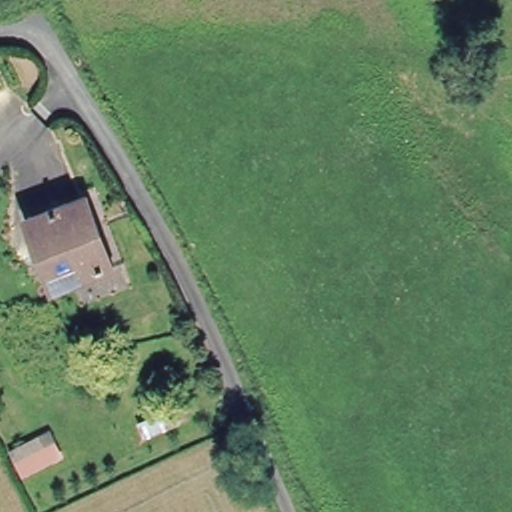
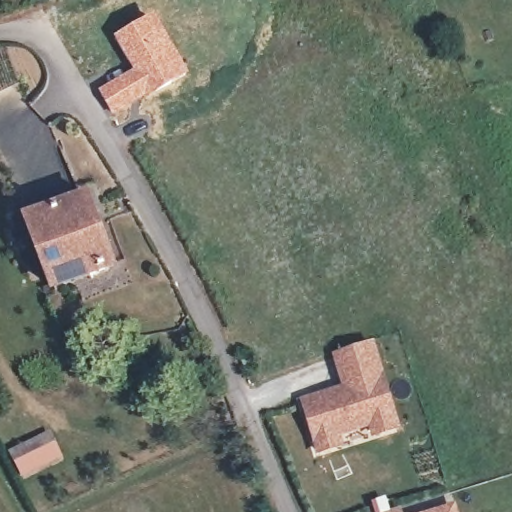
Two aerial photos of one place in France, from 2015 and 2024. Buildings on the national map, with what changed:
new [(132,71),(113,36),(155,15),(189,75),(113,116),(98,89),(132,71)]
unchanged [(25,226),(84,204),(104,261),(108,272),(84,283),(49,298),(46,293),(44,285),(25,226)]
new [(371,438),(368,427),(340,435),(343,446),(317,455),(299,398),(341,385),(332,355),(374,341),(400,429),(371,438)]
unchanged [(25,483),(9,452),(23,445),(39,437),(51,461),(25,483)]
new [(454,504),(457,512),(426,512),(454,504)]
new [(400,507),(402,512),(384,512),(400,507)]

